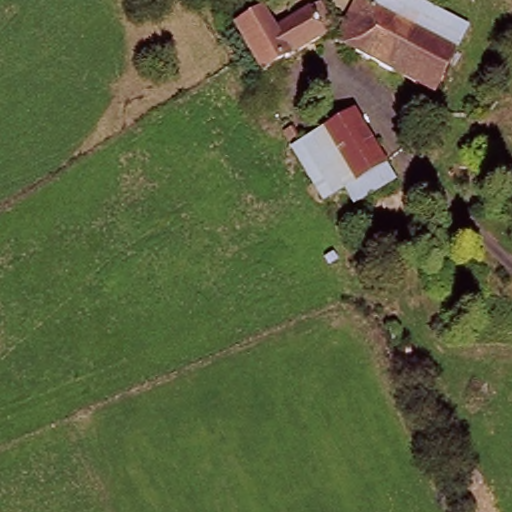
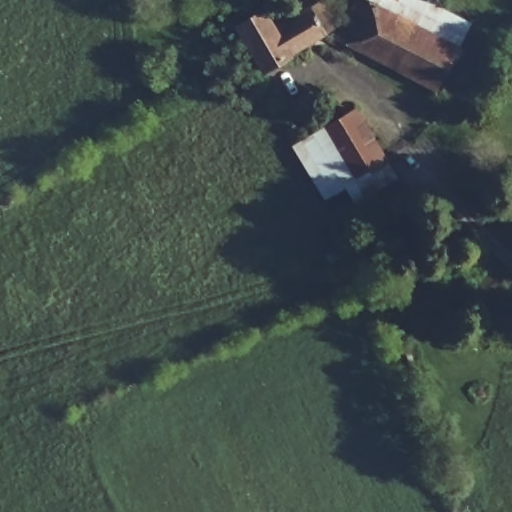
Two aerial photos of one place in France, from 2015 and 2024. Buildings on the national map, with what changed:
unchanged [(260,0),(275,22),(313,0),(321,0),(334,24),(261,72),(229,20),(260,0)]
unchanged [(435,81),(344,24),(358,0),(395,0),(460,40),(435,81)]
unchanged [(356,105),(395,177),(353,201),(345,184),(325,197),(289,142),(356,105)]

